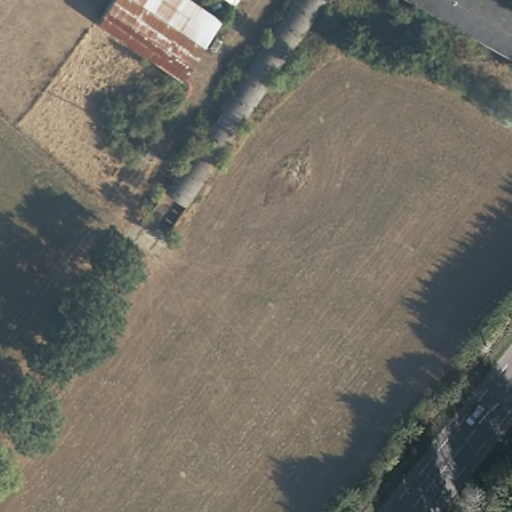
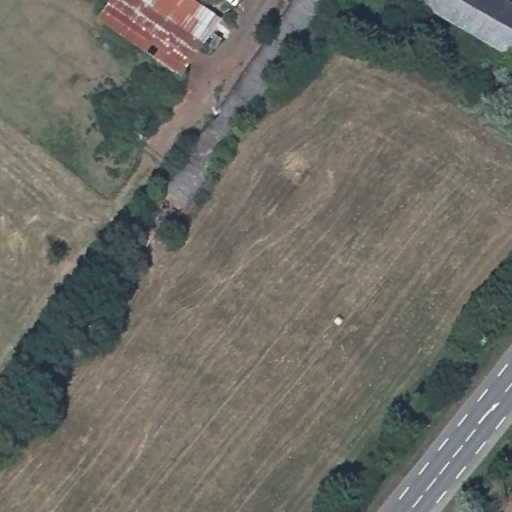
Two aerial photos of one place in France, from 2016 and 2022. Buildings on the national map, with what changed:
unchanged [(189,0),(220,21),(182,76),(97,18),(110,0),(189,0)]
unchanged [(330,0),(332,0),(170,238),(141,218),(290,0),(330,0)]
unchanged [(512,52),(421,0),(510,0),(512,1),(512,52)]

